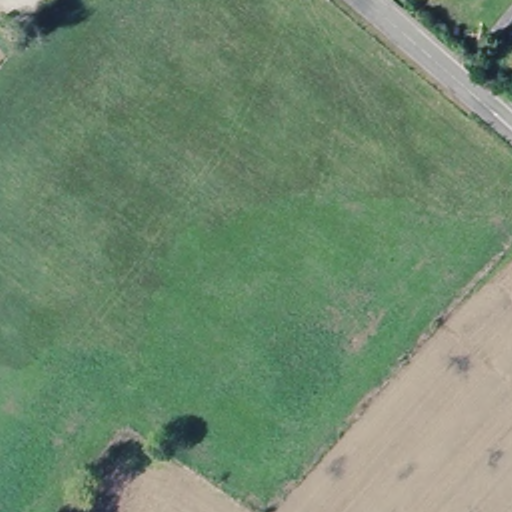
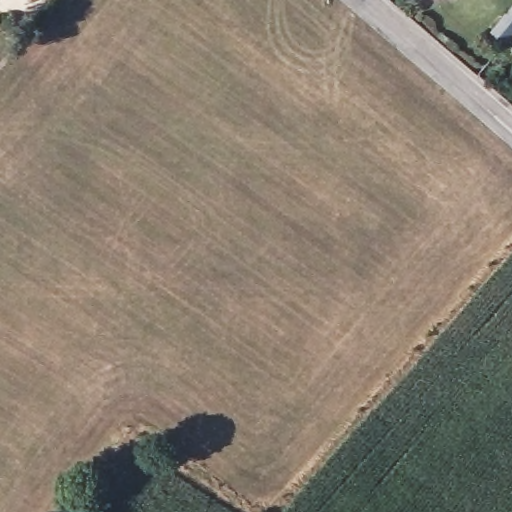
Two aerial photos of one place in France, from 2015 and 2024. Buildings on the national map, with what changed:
unchanged [(512,8),(512,36),(503,46),(490,34),(512,8)]

